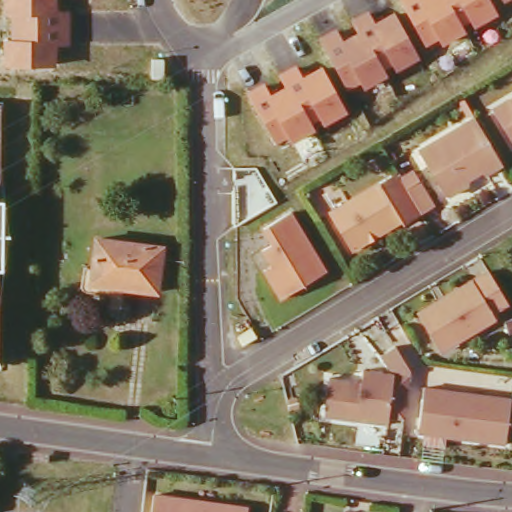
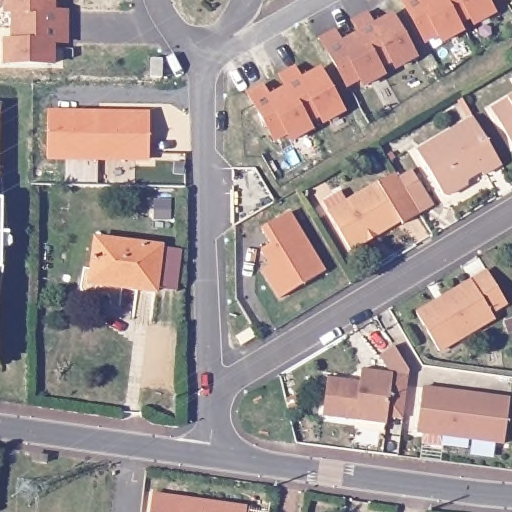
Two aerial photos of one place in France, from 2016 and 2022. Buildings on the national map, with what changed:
unchanged [(71,14),(72,50),(58,49),(58,72),(5,73),(4,44),(11,44),(10,20),(5,20),(5,0),(58,0),(58,14),(71,14)]
unchanged [(477,34),(472,27),(464,32),(468,38),(445,52),(440,44),(428,51),(398,0),(421,0),(422,1),(424,0),(488,0),(501,20),(477,34)]
unchanged [(501,0),(512,0),(512,4),(505,8),(501,0)]
unchanged [(422,64),(399,78),(393,70),(387,74),(390,81),(367,96),(361,89),(350,95),(318,43),(335,34),(343,45),(357,38),(351,25),(370,15),(377,26),(395,18),(422,64)]
unchanged [(349,116),(327,130),(322,123),(313,129),(317,134),(293,148),(289,141),(277,149),(247,98),(263,87),(271,98),(286,91),(278,79),(295,68),(303,81),(322,71),(349,116)]
unchanged [(512,93),(512,140),(509,141),(495,116),(502,111),(497,101),(512,93)]
new [(150,160),(47,160),(47,109),(152,110),(150,160)]
unchanged [(415,153),(468,121),(495,166),(478,177),(475,173),(461,182),(462,185),(442,197),(438,197),(415,153)]
unchanged [(390,184),(403,175),(408,184),(422,210),(410,219),(392,229),(389,226),(340,254),(319,214),(385,176),(390,184)]
unchanged [(262,247),(270,242),(262,228),(288,212),(323,273),(280,296),(265,269),(271,264),(262,247)]
unchanged [(95,237),(158,246),(153,289),(90,279),(95,237)]
unchanged [(431,344),(413,315),(483,274),(503,304),(487,314),(490,320),(452,344),(437,353),(431,344)]
unchanged [(240,333),(252,325),(259,338),(244,346),(240,333)]
unchanged [(327,377),(357,379),(360,367),(390,371),(378,352),(393,344),(407,369),(402,416),(355,412),(353,419),(321,416),(327,377)]
unchanged [(424,387),(507,396),(502,439),(417,429),(424,387)]
unchanged [(147,489),(241,504),(240,512),(144,512),(147,489)]

